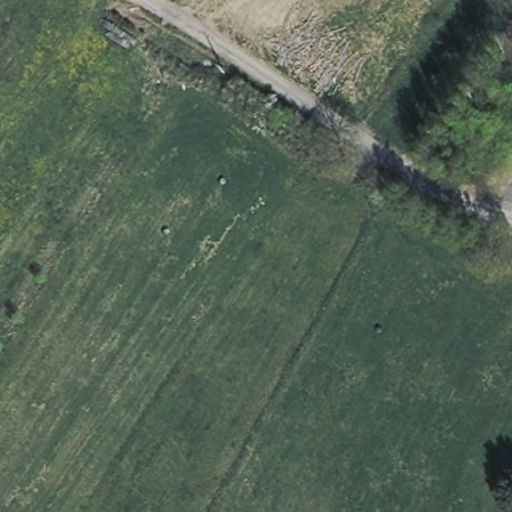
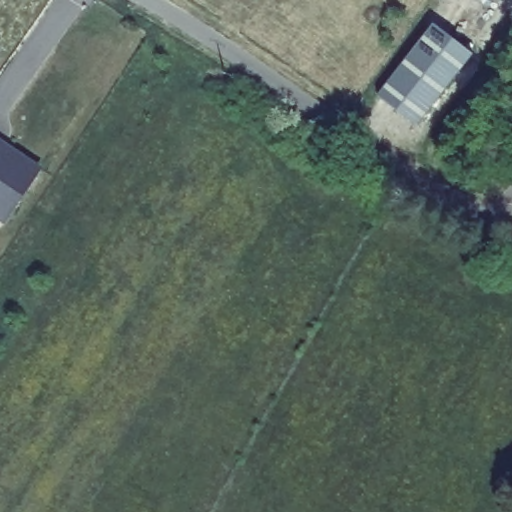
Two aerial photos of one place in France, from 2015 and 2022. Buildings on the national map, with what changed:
new [(433,24),(473,54),(418,126),(378,95),(433,24)]
new [(6,222),(0,218),(0,143),(41,170),(6,222)]

